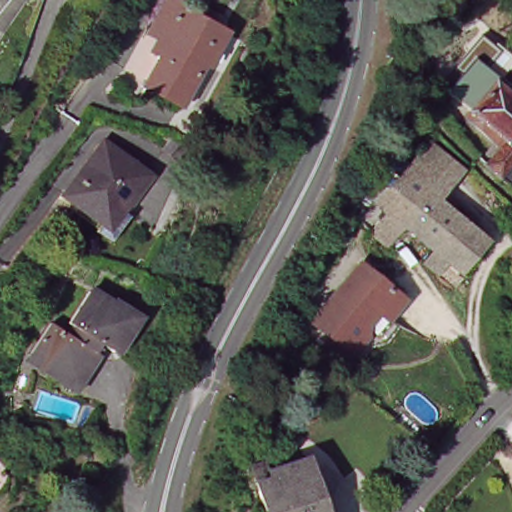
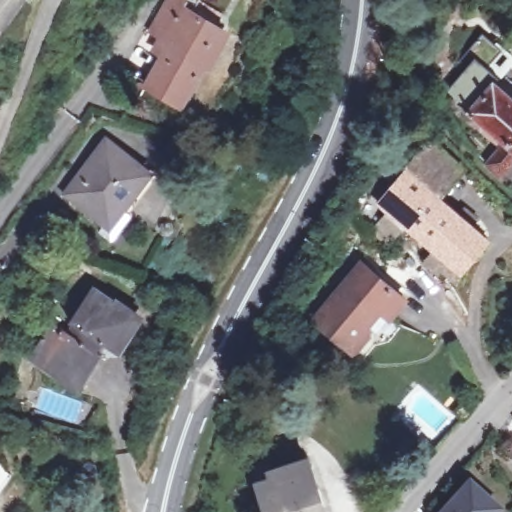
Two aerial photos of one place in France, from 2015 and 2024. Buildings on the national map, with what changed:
unchanged [(201,68),(206,71),(181,114),(147,94),(164,66),(157,61),(166,44),(153,36),(171,4),(185,12),(190,5),(225,25),(218,36),(220,37),(201,68)]
unchanged [(512,97),(512,181),(500,171),(497,172),(483,160),(485,159),(496,142),(460,112),(465,107),(468,105),(439,80),(437,77),(435,76),(456,52),(481,74),(488,65),(498,74),(492,80),(505,90),(512,97)]
unchanged [(106,228),(67,198),(107,146),(151,180),(125,215),(111,232),(106,228)]
unchanged [(426,146),(456,171),(434,197),(404,172),(426,146)]
unchanged [(370,226),(385,210),(377,204),(404,172),(434,197),(456,216),(462,209),(473,218),(466,225),(483,240),(451,278),(440,268),(437,270),(425,258),(431,250),(401,225),(386,240),(370,226)]
unchanged [(402,302),(386,321),(377,314),(365,328),(365,338),(355,350),(333,331),(329,336),(311,320),(360,265),(402,302)]
unchanged [(36,352),(57,321),(73,331),(80,323),(75,320),(96,289),(117,303),(140,319),(120,350),(108,342),(101,351),(80,381),(36,352)]
unchanged [(475,411),(465,421),(455,412),(464,402),(475,411)]
unchanged [(257,484),(258,483),(255,472),(268,467),(270,471),(306,460),(324,512),(266,512),(257,484)]
new [(468,485),(496,510),(494,512),(445,512),(468,485)]

